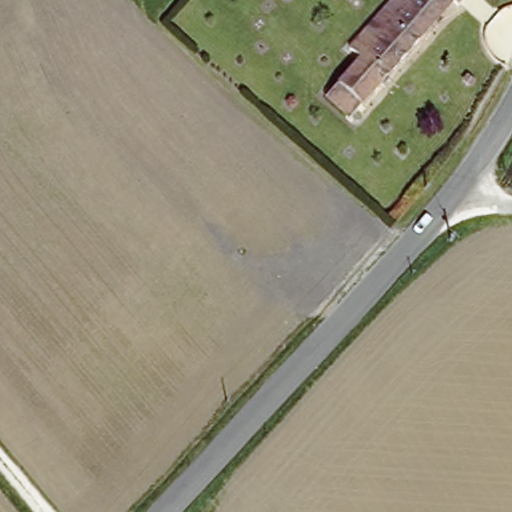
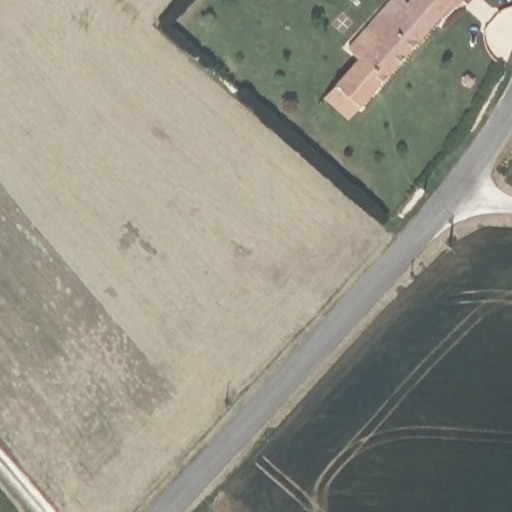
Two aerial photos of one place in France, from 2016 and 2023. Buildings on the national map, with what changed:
unchanged [(352,115),(328,94),(365,52),(355,43),(394,0),(454,0),(352,115)]

